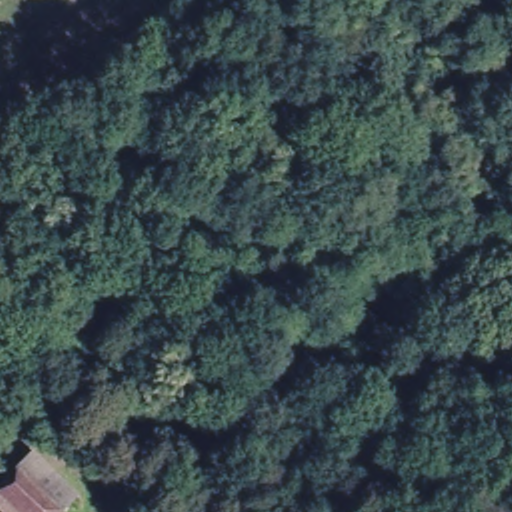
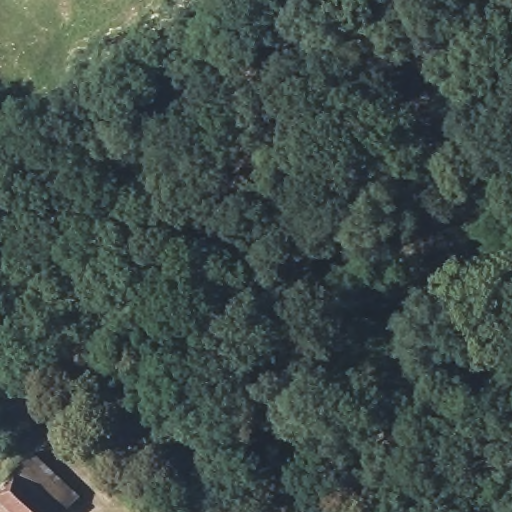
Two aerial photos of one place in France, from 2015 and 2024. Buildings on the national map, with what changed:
unchanged [(65,512),(0,512),(0,489),(31,457),(75,502),(65,512)]

